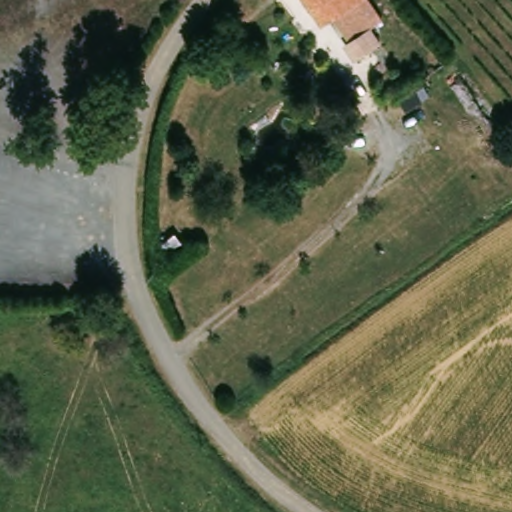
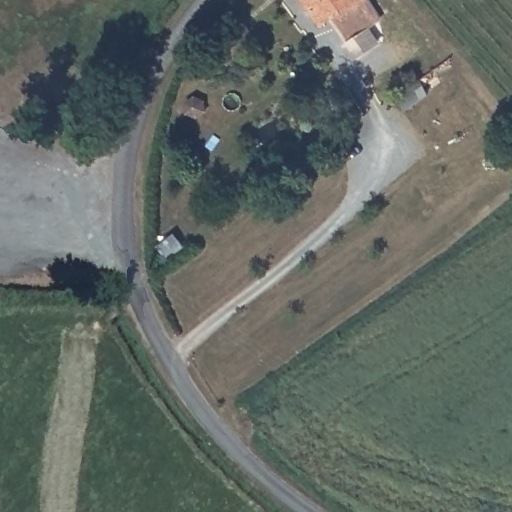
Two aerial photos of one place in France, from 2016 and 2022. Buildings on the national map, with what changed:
unchanged [(305,0),(361,0),(323,26),(305,0)]
unchanged [(169,258),(160,245),(176,234),(185,246),(169,258)]

